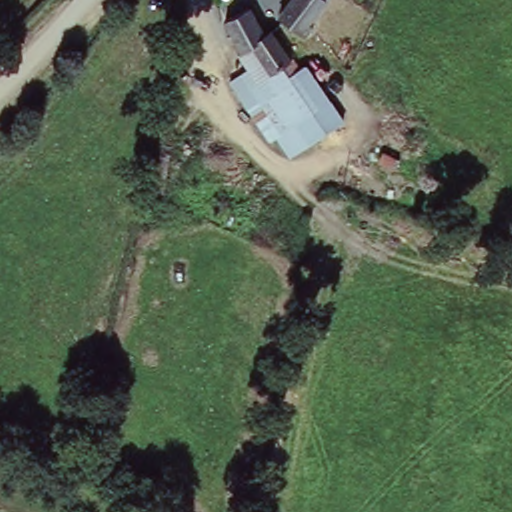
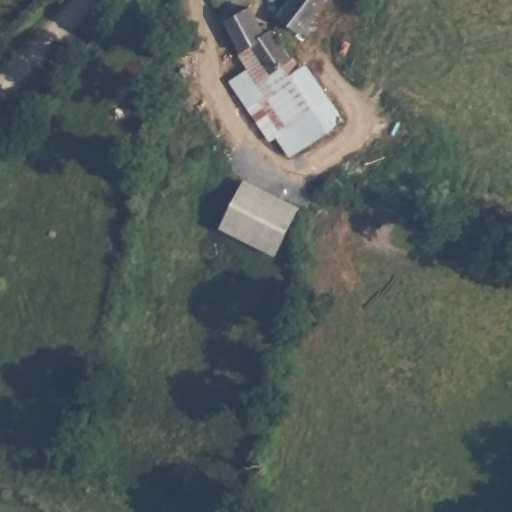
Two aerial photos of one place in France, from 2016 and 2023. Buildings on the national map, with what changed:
unchanged [(282,23),(275,18),(287,0),(322,0),(298,35),(282,23)]
unchanged [(241,67),(218,18),(244,5),(259,32),(268,27),(280,46),(241,67)]
unchanged [(295,66),(308,63),(346,130),(292,160),(283,143),(274,147),(231,86),(250,76),(241,67),(280,46),(295,66)]
new [(300,209),(276,258),(220,230),(245,181),(300,209)]

